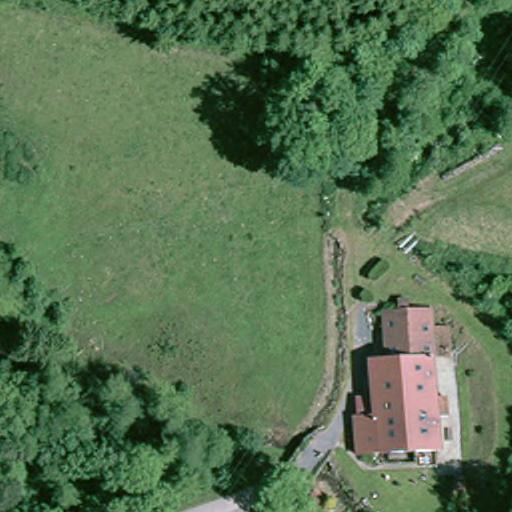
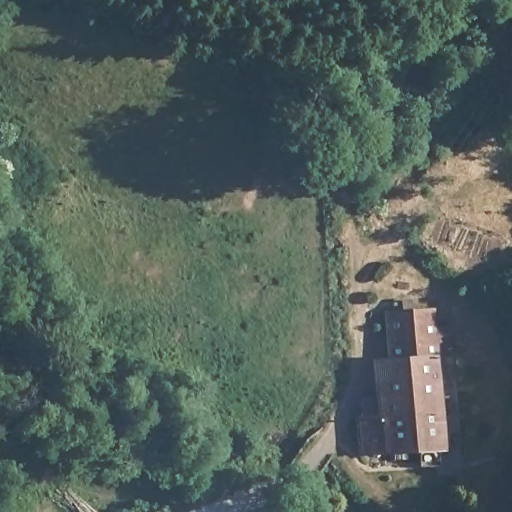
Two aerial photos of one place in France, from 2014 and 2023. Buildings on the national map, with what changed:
unchanged [(452,357),(437,358),(429,358),(389,360),(386,311),(434,308),(435,329),(451,328),(452,357)]
unchanged [(429,358),(437,454),(359,457),(357,424),(376,423),(371,361),(389,360),(429,358)]
unchanged [(298,499),(304,512),(279,512),(278,508),(298,499)]

